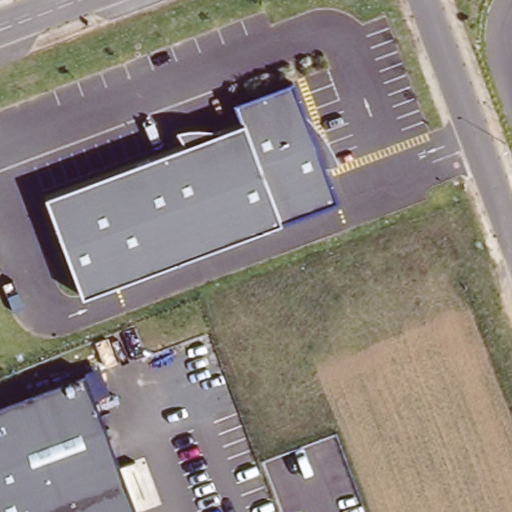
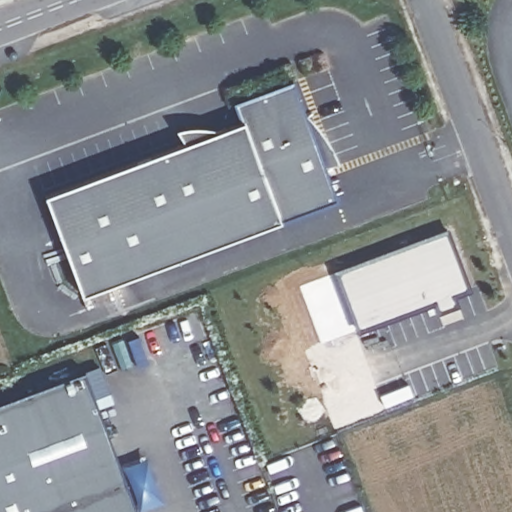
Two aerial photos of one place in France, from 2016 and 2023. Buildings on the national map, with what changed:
unchanged [(45,195),(178,144),(174,129),(194,126),(216,129),(243,120),(236,105),(295,83),(306,117),(322,135),(337,163),(324,165),(338,201),(81,293),(45,195)]
new [(449,230),(472,289),(456,295),(459,305),(442,311),(438,301),(361,330),(339,272),(449,230)]
unchanged [(140,512),(0,512),(0,405),(88,371),(140,512)]

